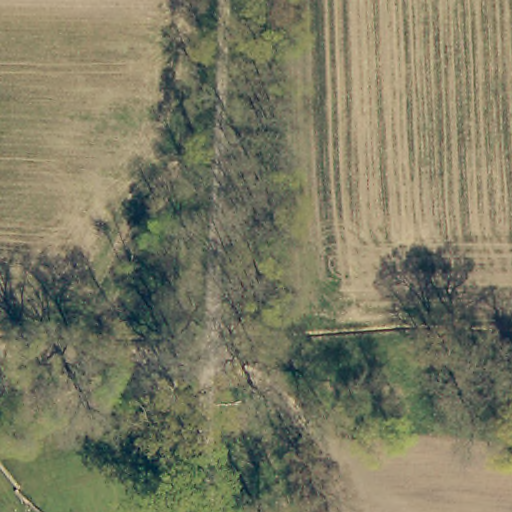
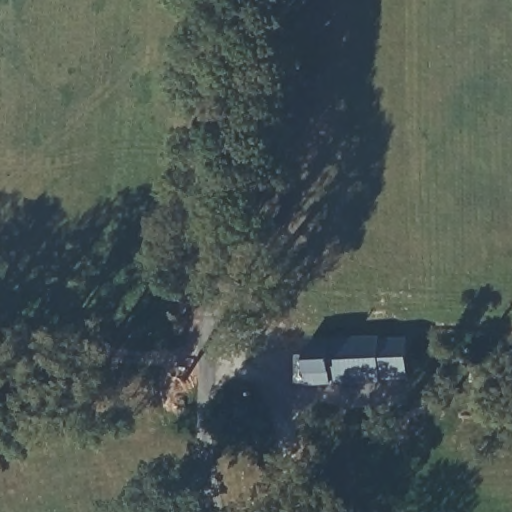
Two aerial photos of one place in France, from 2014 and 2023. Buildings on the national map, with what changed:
new [(312,388),(310,339),(382,337),(383,340),(410,339),(412,383),(312,388)]

